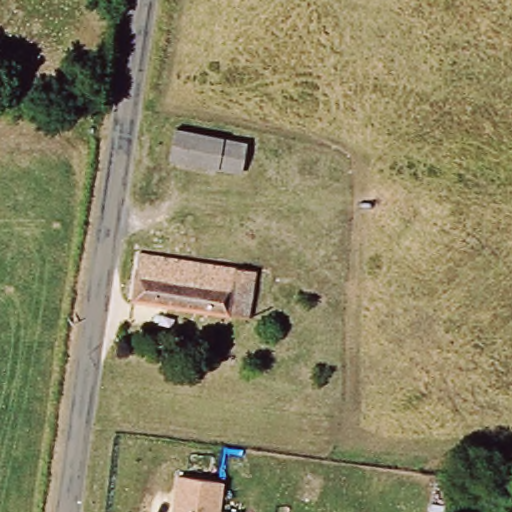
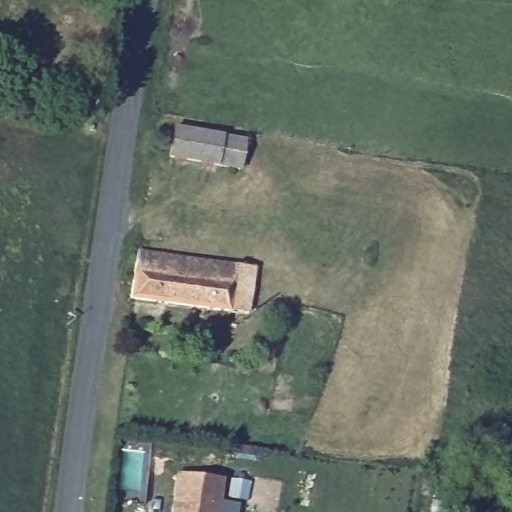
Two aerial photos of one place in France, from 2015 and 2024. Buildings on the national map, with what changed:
unchanged [(243,174),(170,160),(174,130),(249,143),(243,174)]
unchanged [(250,318),(134,298),(140,253),(255,270),(250,318)]
unchanged [(221,478),(217,512),(172,512),(177,471),(221,478)]

